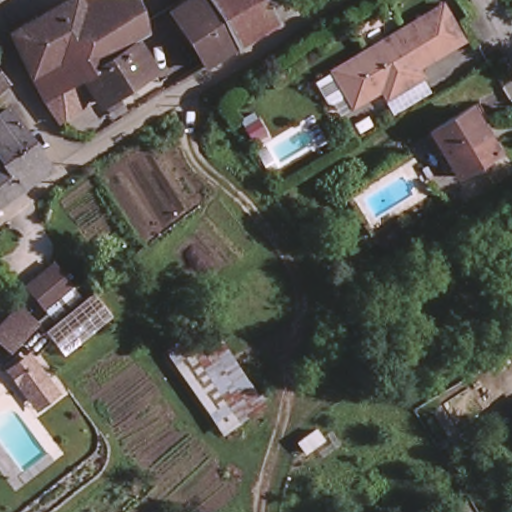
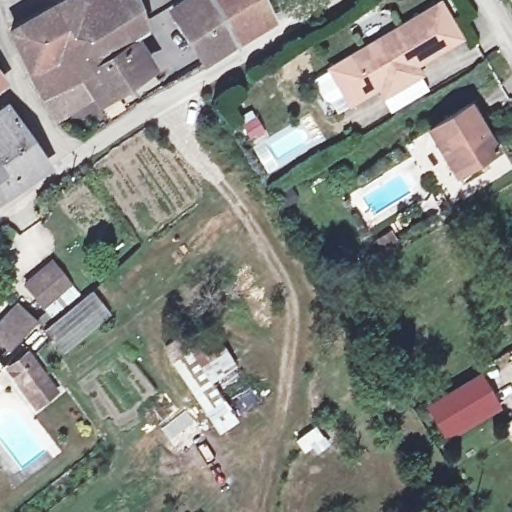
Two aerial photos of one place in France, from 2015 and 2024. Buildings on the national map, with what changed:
unchanged [(257,0),(270,24),(236,43),(209,58),(202,46),(196,38),(173,0),(257,0)]
unchanged [(314,74),(332,64),(431,6),(443,0),(445,0),(464,34),(450,42),(418,60),(424,70),(395,86),(389,78),(352,99),(346,89),(334,97),(326,95),(314,74)]
unchanged [(74,81),(35,104),(3,39),(61,8),(116,8),(136,45),(123,53),(74,81)]
unchanged [(139,80),(91,109),(74,81),(123,53),(139,80)]
unchanged [(454,175),(428,130),(466,106),(477,99),(488,118),(477,125),(493,151),(454,175)]
unchanged [(0,114),(19,140),(0,155),(0,114)]
unchanged [(37,164),(0,195),(0,155),(19,140),(37,164)]
unchanged [(97,288),(113,309),(65,348),(45,325),(52,318),(25,280),(56,255),(81,291),(97,288)]
unchanged [(0,321),(20,303),(40,319),(8,346),(0,339),(0,321)]
unchanged [(166,348),(209,318),(264,398),(226,432),(166,348)]
unchanged [(56,389),(35,407),(5,364),(26,351),(56,389)]
new [(479,373),(499,411),(443,441),(423,406),(479,373)]

